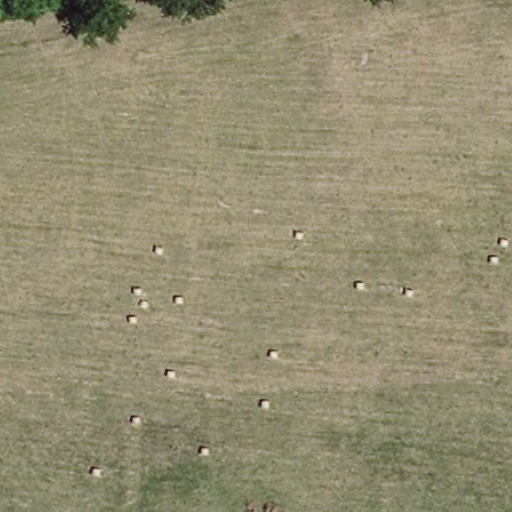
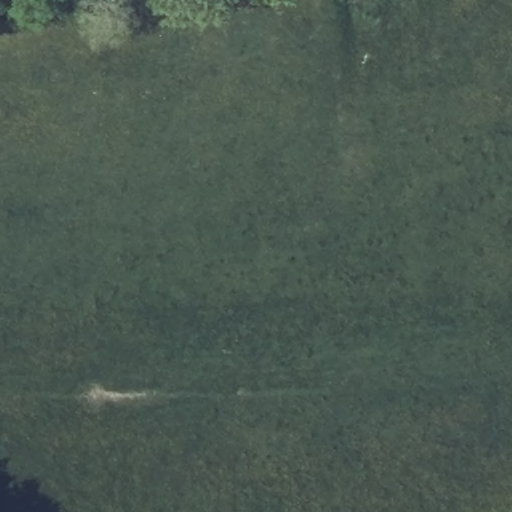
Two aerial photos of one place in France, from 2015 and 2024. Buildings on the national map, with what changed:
[]

